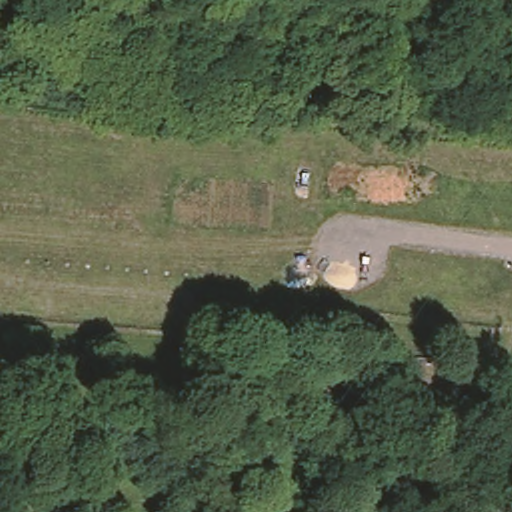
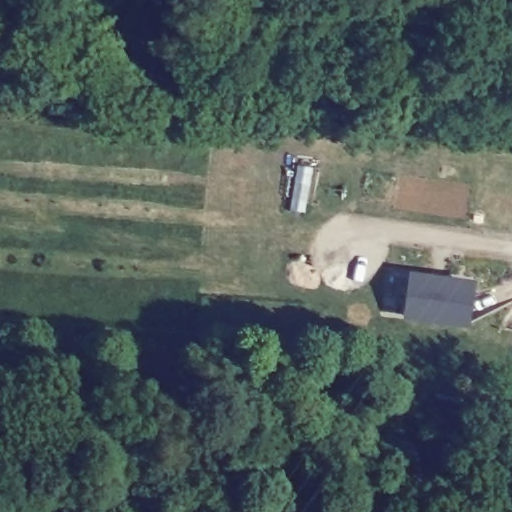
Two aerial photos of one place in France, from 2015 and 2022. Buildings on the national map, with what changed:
new [(476,278),(472,327),(405,319),(410,270),(476,278)]

